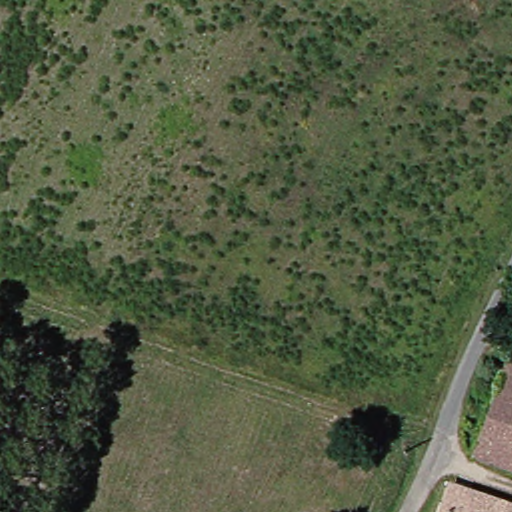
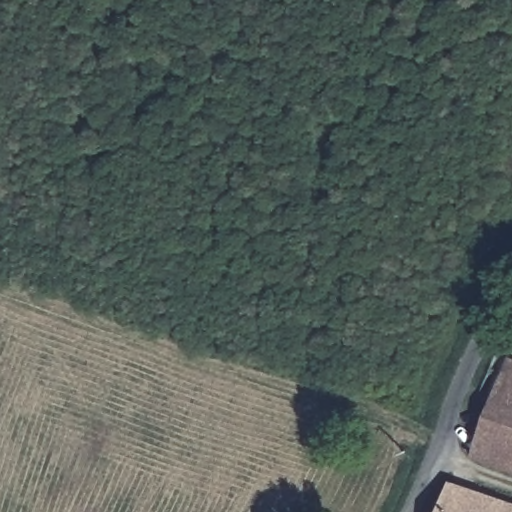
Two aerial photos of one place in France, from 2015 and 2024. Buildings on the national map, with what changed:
unchanged [(498,358),(512,363),(512,466),(468,449),(498,358)]
unchanged [(512,501),(512,511),(512,512),(432,512),(445,475),(512,501)]

